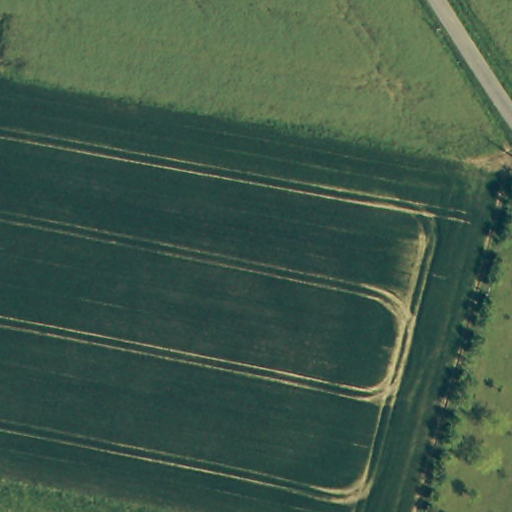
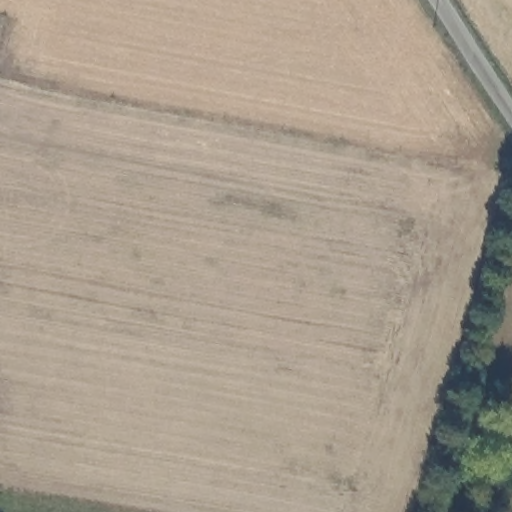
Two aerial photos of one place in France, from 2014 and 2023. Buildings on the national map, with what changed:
[]

